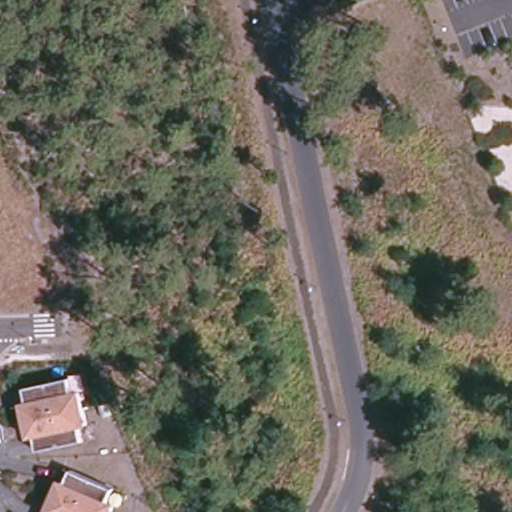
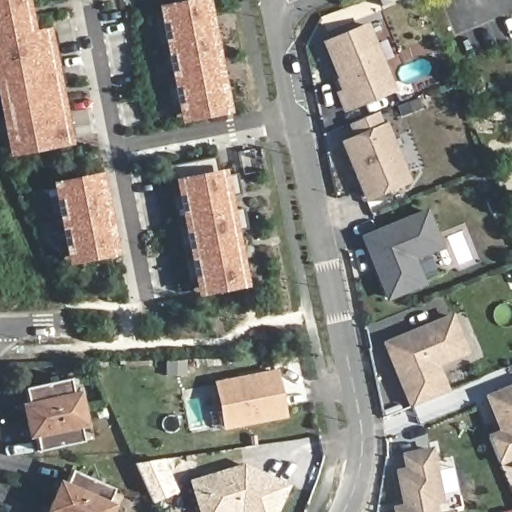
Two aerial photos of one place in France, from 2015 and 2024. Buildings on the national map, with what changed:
new [(50,26),(72,143),(6,155),(0,125),(0,0),(26,0),(32,29),(50,26)]
new [(180,122),(157,5),(185,0),(208,0),(231,112),(180,122)]
new [(351,105),(325,41),(368,25),(393,88),(351,105)]
new [(365,200),(340,140),(352,135),(348,124),(379,110),(383,121),(387,120),(412,181),(365,200)]
new [(225,174),(236,172),(240,194),(229,195),(232,209),(243,207),(247,228),(236,229),(247,285),(197,295),(173,178),(170,164),(220,156),(223,168),(225,174)]
new [(118,253),(67,264),(50,182),(101,171),(118,253)]
new [(417,259),(428,284),(387,302),(359,236),(428,207),(445,248),(417,259)]
new [(438,370),(446,391),(412,404),(386,343),(465,310),(482,352),(438,370)]
new [(279,416),(221,424),(215,384),(273,375),(279,416)]
unchanged [(88,427),(80,429),(83,442),(38,453),(35,438),(28,440),(20,404),(28,403),(25,389),(70,379),(73,393),(81,391),(88,427)]
new [(512,384),(512,464),(509,457),(495,462),(484,436),(498,431),(492,416),(484,396),(512,384)]
new [(444,504),(438,504),(439,512),(392,512),(391,505),(400,503),(394,468),(403,467),(400,452),(433,445),(444,504)]
new [(270,512),(199,512),(190,483),(241,467),(282,487),(270,512)]
unchanged [(112,512),(44,512),(59,479),(67,483),(72,470),(115,489),(108,502),(115,504),(112,512)]

